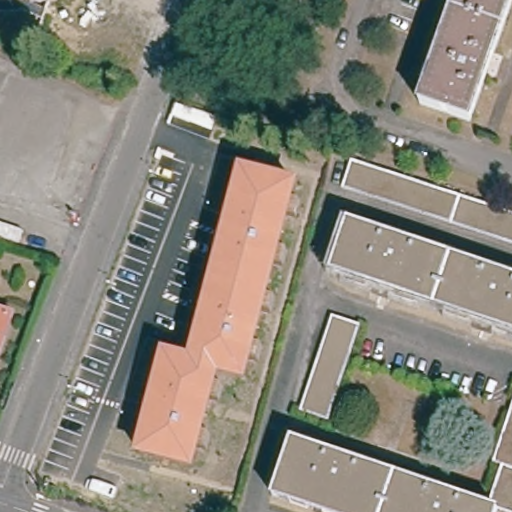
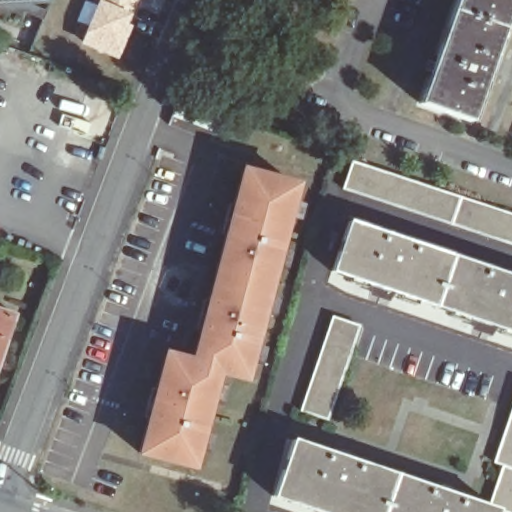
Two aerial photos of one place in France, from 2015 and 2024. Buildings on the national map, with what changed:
new [(80,44),(99,0),(141,0),(117,60),(80,44)]
unchanged [(471,121),(422,103),(458,0),(512,0),(512,7),(481,93),(471,121)]
new [(177,105),(218,120),(214,131),(173,116),(177,105)]
unchanged [(504,240),(431,217),(345,188),(352,160),(364,164),(431,187),(482,202),(512,212),(512,242),(504,240)]
unchanged [(297,185),(275,259),(244,374),(218,367),(198,436),(189,464),(139,448),(150,407),(165,354),(192,360),(222,258),(246,172),(297,185)]
unchanged [(425,247),(504,272),(512,274),(512,330),(456,313),(333,271),(348,222),(425,247)]
unchanged [(0,348),(0,306),(12,311),(0,348)]
unchanged [(333,317),(360,325),(329,420),(302,411),(333,317)]
unchanged [(499,509),(498,512),(319,512),(275,497),(293,441),(333,456),(389,473),(491,506),(504,463),(497,461),(512,412),(512,512),(511,512),(499,509)]

